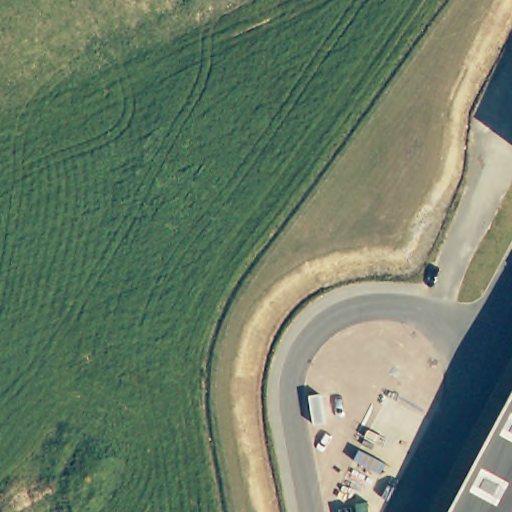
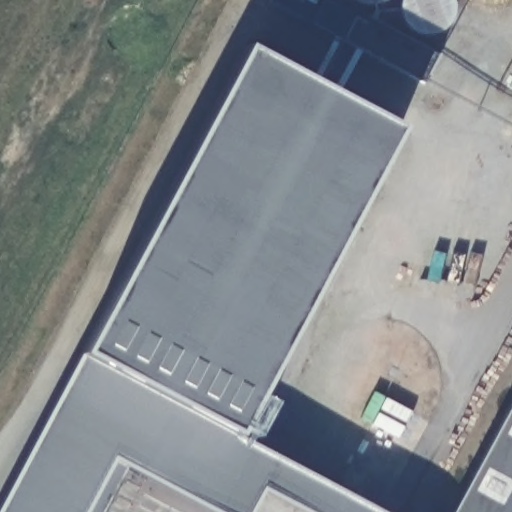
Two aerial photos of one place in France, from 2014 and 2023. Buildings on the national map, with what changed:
new [(273,0),(302,0),(321,10),(327,0),(367,22),(368,18),(438,56),(423,83),(313,24),(272,1),(273,0)]
new [(381,512),(308,512),(263,487),(250,512),(214,512),(132,467),(106,512),(0,512),(0,509),(84,353),(247,47),(398,130),(236,435),(381,512)]
unchanged [(512,416),(506,412),(512,400),(512,416)]
unchanged [(512,416),(512,512),(452,512),(506,412),(512,416)]

